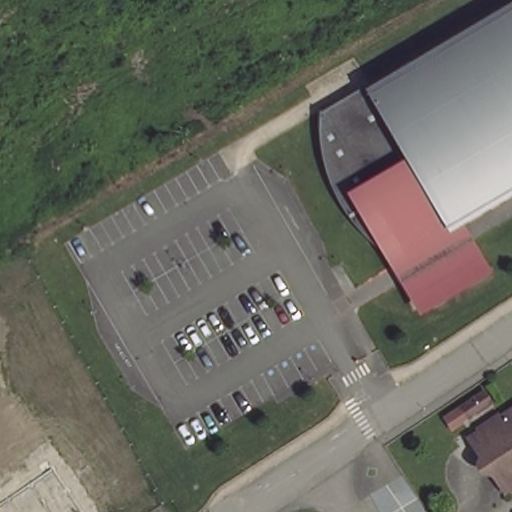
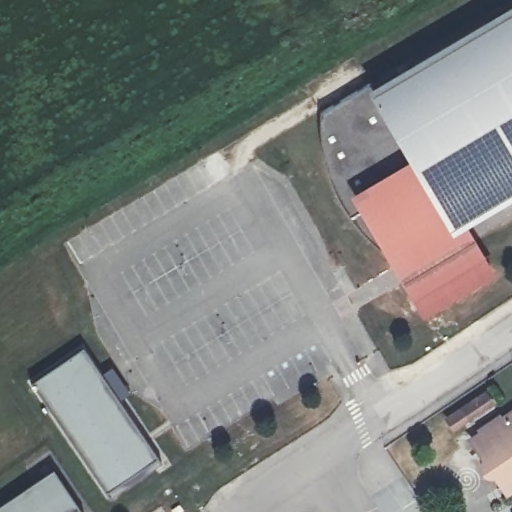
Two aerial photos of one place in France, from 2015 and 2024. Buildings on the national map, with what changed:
unchanged [(512,189),(460,219),(464,225),(472,239),(485,260),(430,293),(417,271),(420,269),(413,256),(409,258),(402,254),(394,249),(388,245),(380,237),(370,229),(364,221),(357,214),(350,204),(345,195),(340,184),(335,174),(331,162),(330,155),(327,142),(325,129),(325,119),(325,106),(375,77),(380,85),(512,7),(512,189)]
new [(169,457),(110,499),(30,386),(92,343),(169,457)]
unchanged [(484,387),(491,398),(470,413),(462,402),(484,387)]
unchanged [(497,470),(493,471),(489,471),(486,469),(484,467),(482,464),(482,461),(484,457),(485,454),(472,436),(512,409),(512,486),(509,488),(497,470)]
new [(57,466),(87,512),(0,512),(0,504),(57,466)]

